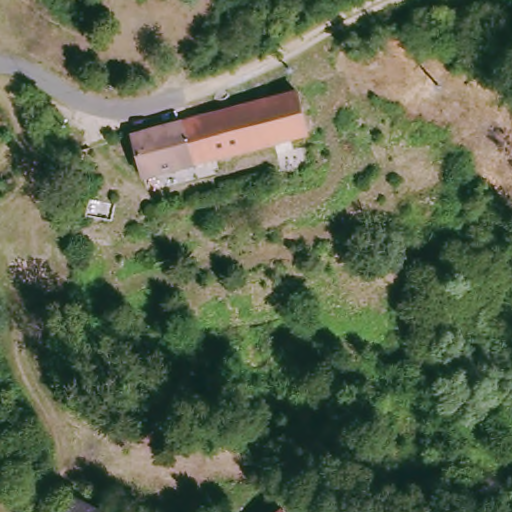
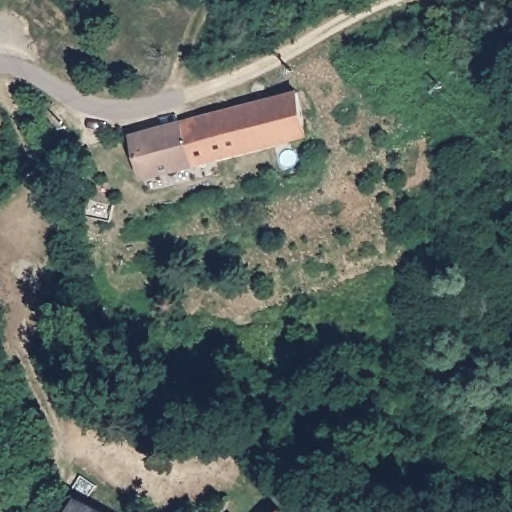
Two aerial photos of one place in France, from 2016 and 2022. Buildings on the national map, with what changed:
unchanged [(303,96),(313,137),(143,182),(135,139),(303,96)]
unchanged [(103,512),(78,512),(85,503),(103,512)]
unchanged [(69,512),(67,512),(67,511),(69,512)]

